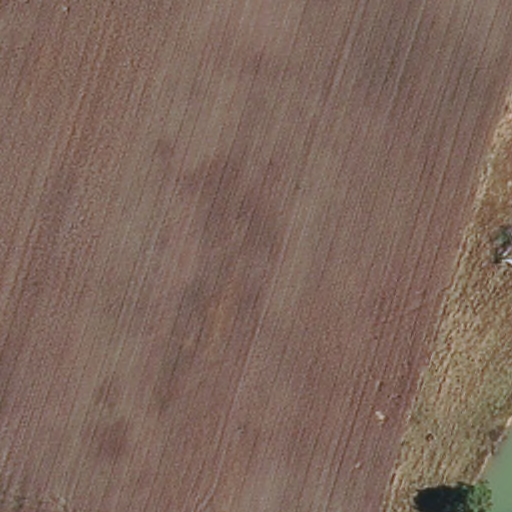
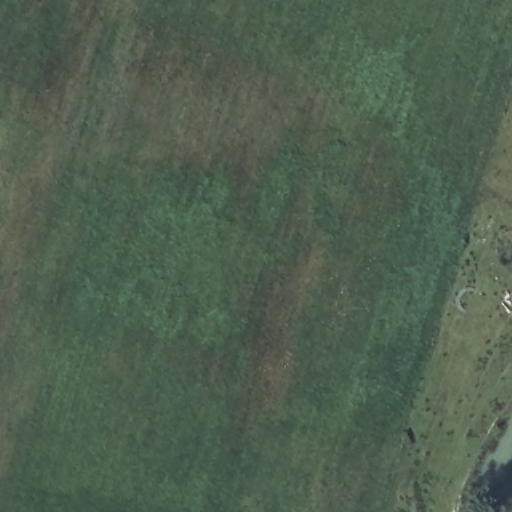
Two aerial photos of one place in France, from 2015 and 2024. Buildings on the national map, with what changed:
[]

